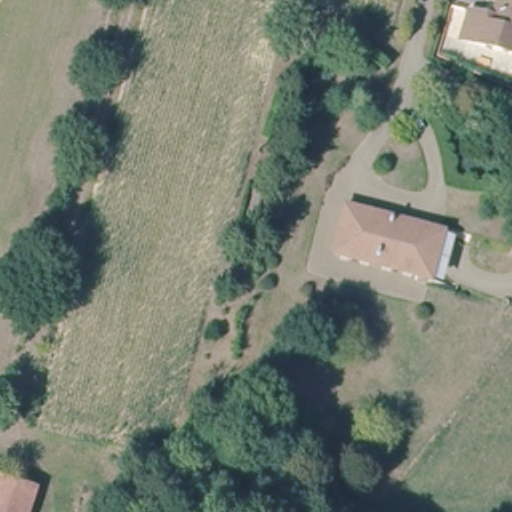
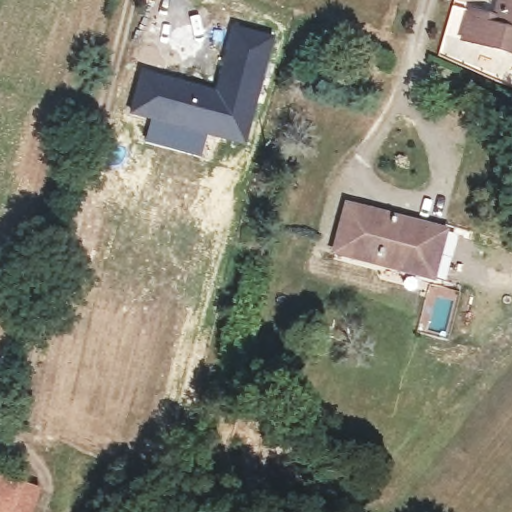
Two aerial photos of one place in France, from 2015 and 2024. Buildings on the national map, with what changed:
unchanged [(459,37),(467,8),(487,13),(492,0),(512,0),(512,51),(459,37)]
new [(139,68),(213,88),(229,22),(274,34),(264,76),(244,144),(206,135),(199,156),(143,141),(148,119),(127,113),(139,68)]
unchanged [(421,266),(335,247),(344,204),(429,223),(442,225),(435,269),(421,266)]
unchanged [(29,512),(0,512),(0,475),(37,486),(29,512)]

